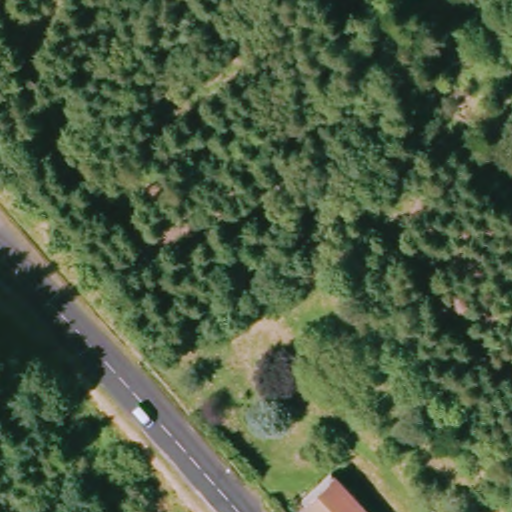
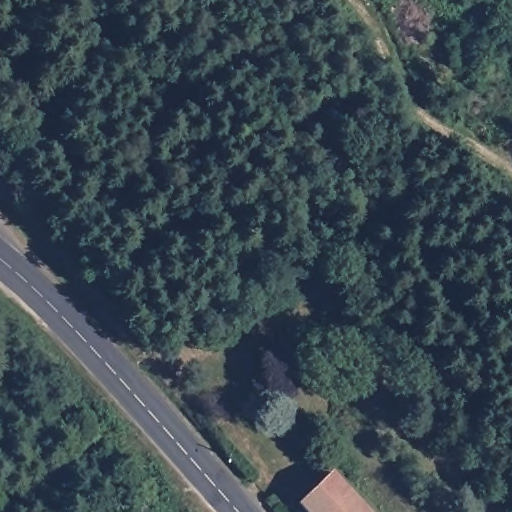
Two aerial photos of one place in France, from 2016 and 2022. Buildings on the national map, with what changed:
unchanged [(293,504),(325,474),(363,512),(301,512),(293,504)]

